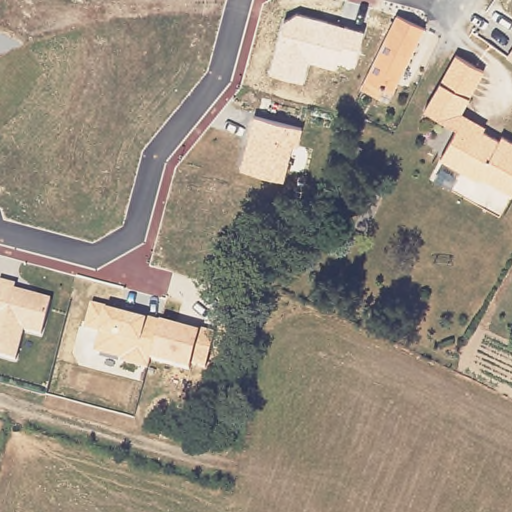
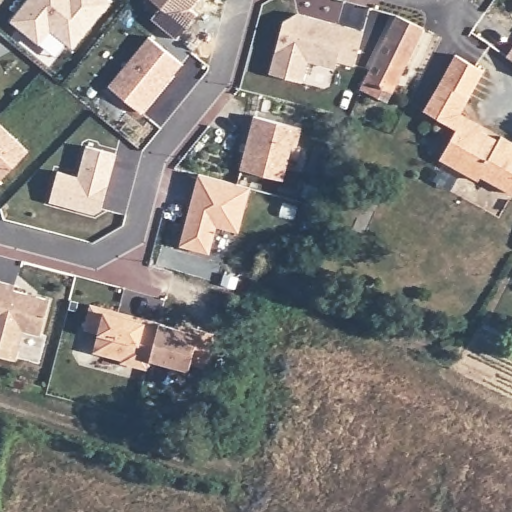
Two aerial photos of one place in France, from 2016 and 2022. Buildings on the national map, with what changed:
new [(72,48),(51,30),(40,45),(10,21),(27,0),(109,0),(111,2),(72,48)]
unchanged [(283,21),(295,12),(364,29),(356,66),(338,62),(337,70),(309,62),(303,83),(268,73),(283,21)]
unchanged [(391,93),(383,89),(378,99),(360,89),(396,15),(421,27),(391,93)]
new [(141,113),(108,85),(148,36),(182,64),(141,113)]
unchanged [(509,53),(512,49),(512,55),(509,53)]
unchanged [(427,106),(459,50),(486,65),(461,111),(455,122),(427,106)]
unchanged [(503,134),(504,131),(512,135),(512,187),(485,171),(481,177),(438,151),(455,122),(461,111),(503,134)]
unchanged [(304,128),(297,150),(292,149),(284,180),(238,169),(254,117),(304,128)]
new [(0,124),(28,152),(0,181),(0,124)]
new [(103,210),(93,214),(50,202),(58,169),(79,176),(86,145),(118,154),(103,210)]
new [(253,187),(239,232),(216,227),(210,253),(180,245),(199,173),(253,187)]
unchanged [(14,290),(49,298),(41,333),(23,330),(15,362),(0,358),(0,280),(15,284),(14,290)]
unchanged [(90,305),(211,334),(204,367),(190,362),(189,371),(150,360),(147,369),(121,364),(118,359),(95,353),(99,335),(83,330),(90,305)]

